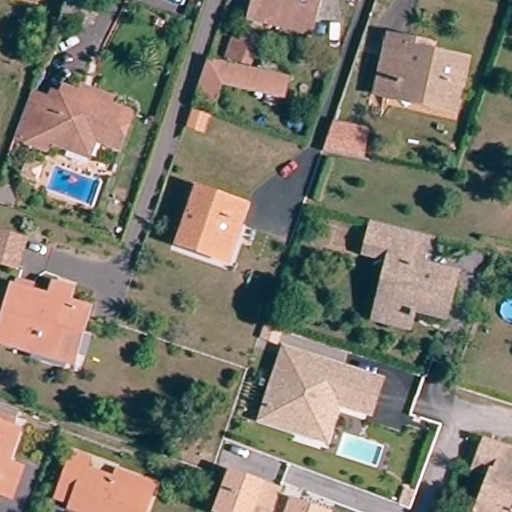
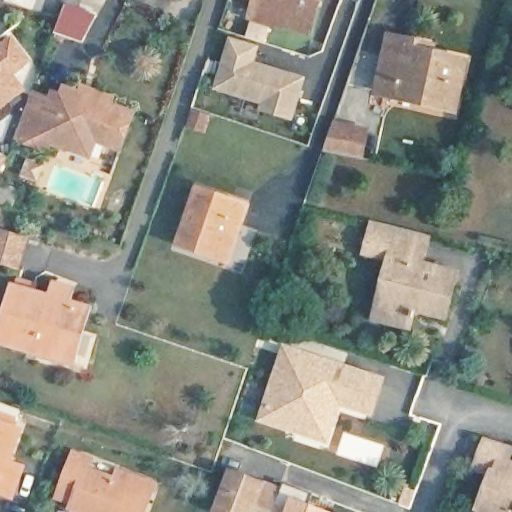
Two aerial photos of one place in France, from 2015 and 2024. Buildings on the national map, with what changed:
unchanged [(258,20),(263,0),(323,0),(316,32),(258,20)]
unchanged [(234,56),(243,32),(268,40),(259,65),(234,56)]
new [(0,112),(0,47),(16,36),(35,63),(18,75),(29,91),(0,112)]
unchanged [(377,95),(389,41),(427,49),(425,57),(464,65),(454,111),(377,95)]
unchanged [(291,89),(289,94),(284,109),(230,89),(228,94),(210,87),(219,65),(291,89)]
unchanged [(61,103),(64,95),(74,99),(75,97),(78,89),(92,95),(95,88),(125,99),(122,107),(144,115),(131,153),(108,145),(103,159),(62,145),(60,152),(29,142),(45,98),(61,103)]
unchanged [(367,129),(362,156),(325,149),(327,143),(335,123),(367,129)]
new [(8,158),(2,174),(0,173),(0,156),(8,158)]
unchanged [(28,164),(45,170),(40,184),(23,178),(28,164)]
unchanged [(0,177),(19,183),(12,202),(0,198),(0,177)]
unchanged [(211,263),(172,250),(191,194),(240,211),(233,231),(221,266),(211,263)]
unchanged [(380,287),(386,264),(359,257),(368,227),(368,226),(421,240),(420,243),(412,271),(447,280),(436,322),(407,314),(403,331),(379,324),(370,322),(380,287)]
unchanged [(23,240),(21,247),(13,267),(0,263),(0,231),(23,240)]
unchanged [(65,367),(0,344),(0,333),(14,293),(16,287),(34,293),(32,300),(50,306),(54,296),(70,301),(66,312),(83,318),(65,367)]
unchanged [(285,334),(280,347),(263,342),(268,329),(285,334)]
unchanged [(300,435),(267,424),(289,354),(383,384),(373,416),(342,406),(339,414),(332,436),(330,444),(300,435)]
unchanged [(13,504),(0,499),(0,415),(23,424),(16,439),(22,442),(10,470),(24,476),(13,504)]
unchanged [(57,495),(76,449),(93,456),(89,466),(115,477),(119,466),(155,481),(142,512),(79,512),(69,508),(72,501),(57,495)]
unchanged [(468,475),(476,451),(477,451),(498,458),(493,472),(512,478),(508,490),(512,492),(512,512),(476,512),(486,481),(468,475)]
unchanged [(278,498),(273,512),(215,512),(230,473),(280,492),(278,498)]
unchanged [(273,512),(278,498),(316,512),(273,512)]

